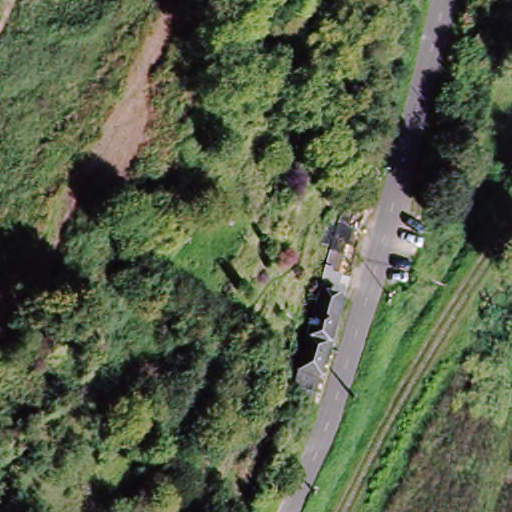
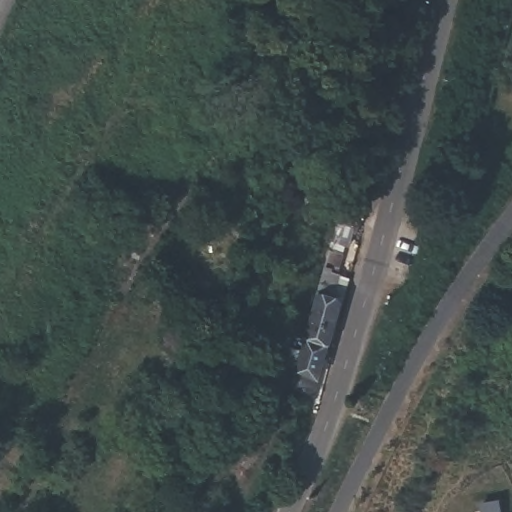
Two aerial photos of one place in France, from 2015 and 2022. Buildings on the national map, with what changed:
unchanged [(345,302),(342,301),(330,341),(307,333),(315,304),(310,302),(313,293),(317,295),(318,293),(316,292),(342,204),(350,193),(364,214),(363,218),(360,232),(358,229),(353,244),(349,242),(340,271),(343,272),(340,280),(351,284),(345,302)]
unchanged [(312,398),(303,396),(307,386),(292,382),(307,333),(330,341),(312,398)]
new [(482,512),(480,501),(500,497),(500,512),(482,512)]

